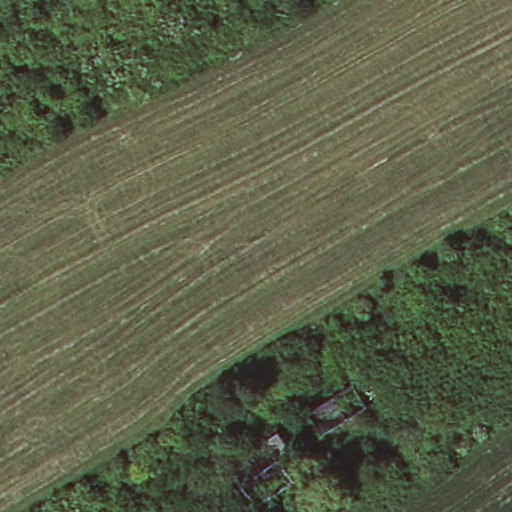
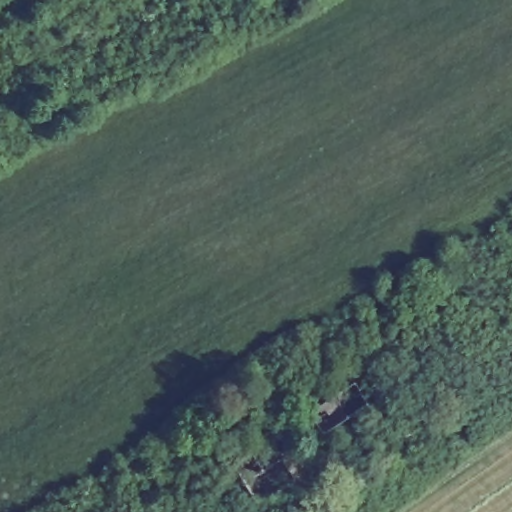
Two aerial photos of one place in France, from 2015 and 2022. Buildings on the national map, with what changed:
unchanged [(353,381),(359,390),(376,379),(397,409),(378,421),(366,403),(321,431),(308,410),(353,381)]
unchanged [(291,451),(281,457),(294,477),(256,501),(229,461),(278,430),(291,451)]

